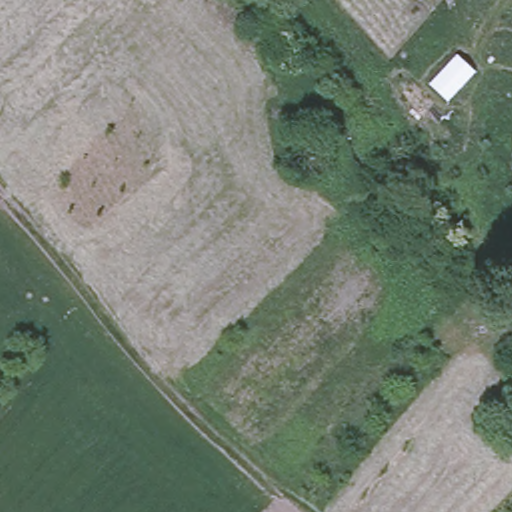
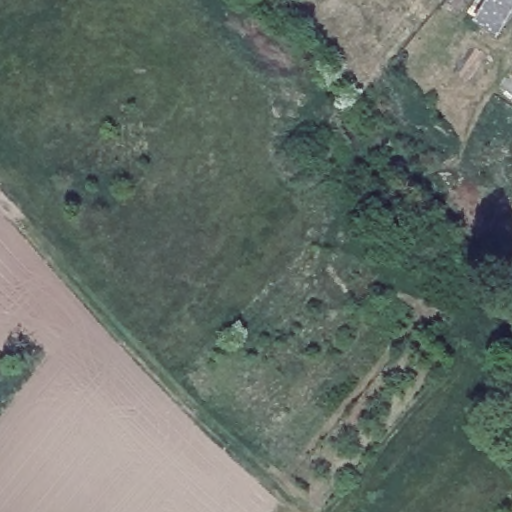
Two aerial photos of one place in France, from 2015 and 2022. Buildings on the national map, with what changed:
new [(472,23),(486,0),(512,0),(512,15),(498,38),(472,23)]

